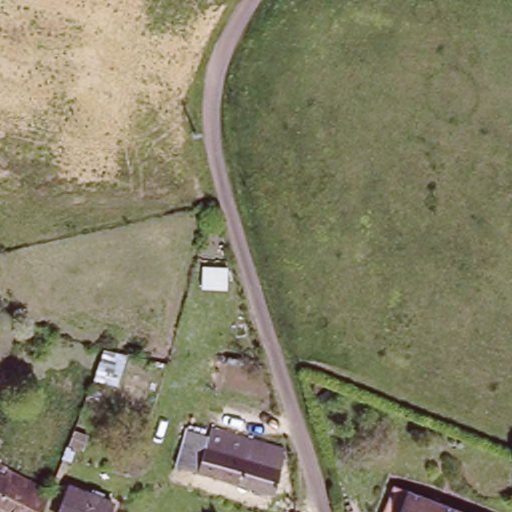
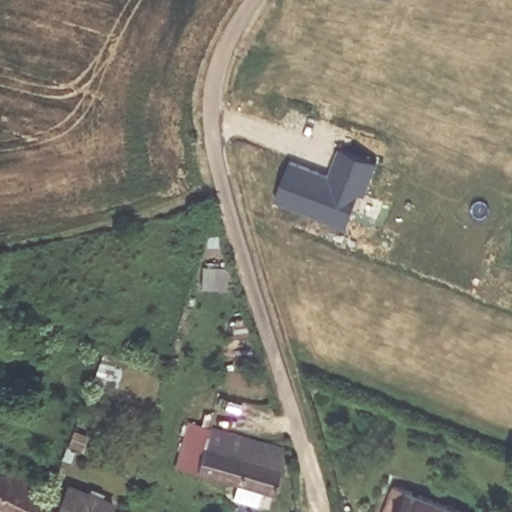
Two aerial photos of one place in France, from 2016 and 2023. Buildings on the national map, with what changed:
new [(277,199),(290,162),(329,175),(338,149),(372,162),(348,226),(277,199)]
unchanged [(208,472),(177,463),(184,429),(206,434),(210,426),(289,445),(272,493),(208,472)]
unchanged [(59,488),(47,512),(23,512),(0,499),(0,464),(23,475),(26,472),(59,488)]
unchanged [(108,512),(61,512),(74,484),(113,502),(108,512)]
unchanged [(398,487),(452,512),(388,512),(392,502),(398,487)]
unchanged [(349,512),(343,493),(353,490),(360,512),(349,512)]

